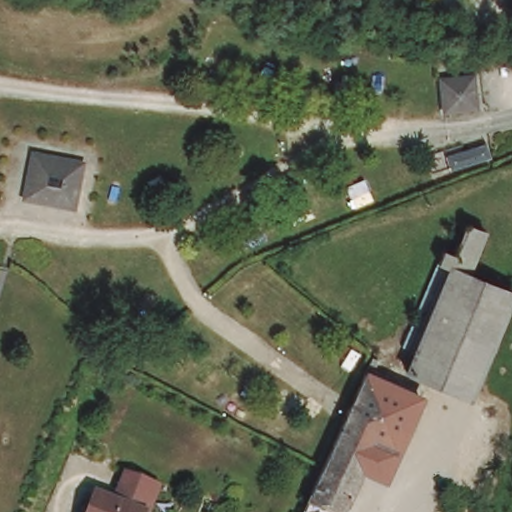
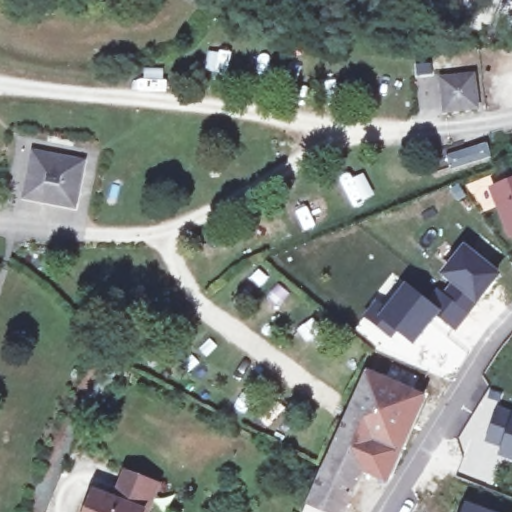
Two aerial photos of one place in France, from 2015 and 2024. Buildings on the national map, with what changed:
unchanged [(449,107),(448,100),(445,76),(475,72),(478,95),(479,102),(449,107)]
unchanged [(27,174),(30,162),(32,148),(39,149),(80,157),(72,198),(32,191),(25,189),(27,174)]
new [(508,227),(493,189),(512,181),(512,225),(508,227)]
demolished [(417,351),(452,268),(438,263),(444,251),(457,257),(470,227),(487,234),(475,261),(474,263),(469,275),(512,292),(512,298),(470,394),(469,397),(408,373),(417,351)]
new [(463,242),(501,273),(475,304),(449,283),(439,274),(463,242)]
new [(404,280),(427,299),(442,311),(437,317),(412,345),(397,333),(394,336),(373,320),(404,280)]
new [(437,288),(442,291),(449,283),(475,304),(455,330),(437,317),(442,311),(427,299),(437,288)]
unchanged [(377,366),(423,387),(387,471),(366,462),(343,512),(319,512),(305,507),(325,462),(376,347),(383,350),(377,366)]
new [(483,442),(497,408),(512,412),(512,461),(498,456),(502,448),(483,442)]
demolished [(468,424),(500,436),(485,477),(452,459),(468,424)]
unchanged [(77,512),(88,484),(109,493),(118,467),(164,483),(151,512),(77,512)]
new [(493,512),(462,512),(466,502),(493,512)]

